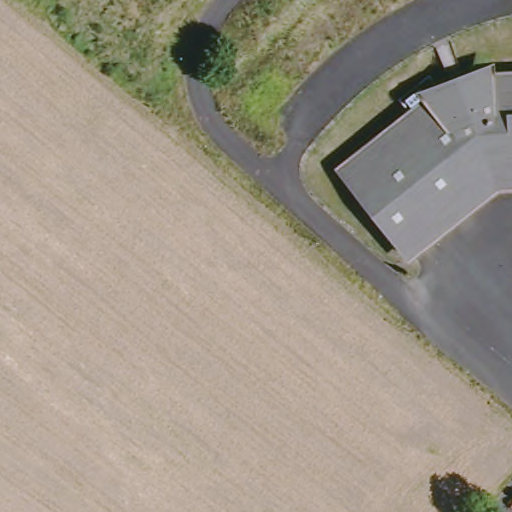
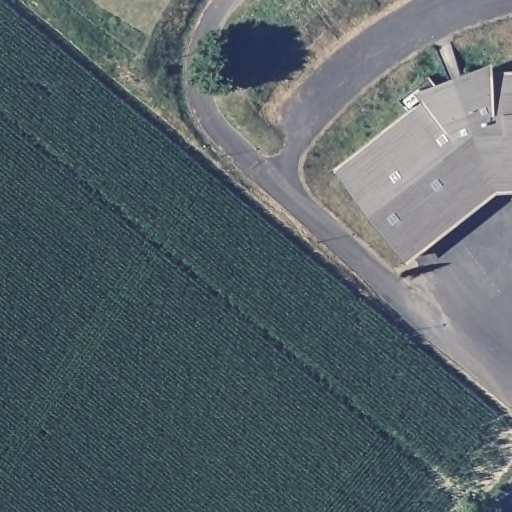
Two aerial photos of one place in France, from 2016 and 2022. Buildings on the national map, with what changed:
unchanged [(445,84),(462,74),(512,71),(512,183),(502,183),(417,253),(347,164),(417,108),(405,93),(432,70),(445,84)]

